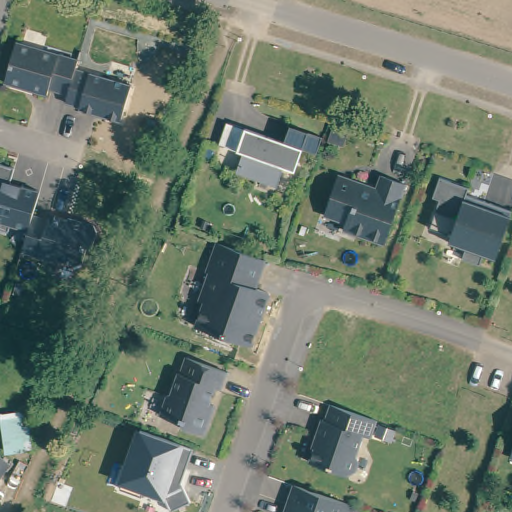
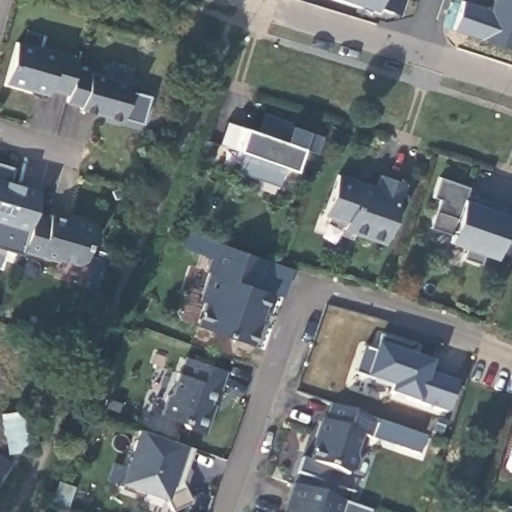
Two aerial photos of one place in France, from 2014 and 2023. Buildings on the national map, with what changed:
new [(360,2),(355,0),(361,0),(360,2)]
new [(400,14),(379,7),(381,3),(372,0),(405,0),(400,14)]
new [(512,46),(511,48),(447,25),(455,0),(465,0),(484,7),(487,0),(512,0),(512,46)]
unchanged [(46,88),(44,94),(2,82),(13,43),(75,60),(74,64),(65,94),(46,88)]
unchanged [(65,94),(74,64),(130,80),(119,116),(78,104),(77,107),(62,103),(65,94)]
unchanged [(253,132),(265,111),(289,123),(320,134),(313,156),(297,151),(290,172),(279,168),(273,185),(232,172),(238,155),(214,147),(222,124),(253,132)]
unchanged [(35,201),(31,216),(29,220),(27,227),(26,231),(8,226),(5,232),(0,230),(0,165),(11,168),(7,183),(37,191),(35,201)]
unchanged [(404,180),(385,240),(342,227),(344,219),(324,211),(330,193),(332,193),(337,173),(363,180),(362,188),(372,190),(379,173),(404,180)]
unchanged [(467,184),(464,195),(480,200),(482,196),(511,205),(502,234),(489,230),(480,260),(460,253),(464,243),(448,238),(451,231),(429,223),(438,196),(432,195),(438,174),(467,184)]
unchanged [(46,220),(47,215),(64,220),(66,223),(71,225),(72,220),(91,225),(95,231),(91,243),(85,247),(81,261),(75,265),(56,259),(55,262),(20,252),(26,231),(27,227),(29,220),(31,216),(46,220)]
unchanged [(255,286),(268,290),(250,342),(196,323),(203,300),(199,299),(209,271),(206,269),(216,240),(264,257),(255,286)]
new [(362,349),(373,353),(379,338),(414,350),(411,360),(428,366),(425,377),(454,387),(444,416),(387,396),(390,389),(352,376),(362,349)]
unchanged [(36,388),(40,379),(37,377),(45,358),(25,350),(30,339),(65,353),(60,364),(47,393),(36,388)]
unchanged [(218,386),(213,385),(204,413),(208,419),(203,432),(182,426),(181,422),(158,415),(165,392),(169,394),(176,372),(179,372),(184,356),(224,369),(218,386)]
unchanged [(368,433),(360,430),(353,449),(355,454),(356,459),(354,462),(352,467),(349,470),(343,470),(309,458),(316,437),(316,428),(320,416),(324,415),(329,401),(347,408),(372,417),(368,433)]
unchanged [(138,430),(185,446),(194,450),(180,483),(189,503),(172,511),(166,499),(119,483),(138,430)]
unchanged [(512,439),(512,459),(505,457),(512,439)]
unchanged [(6,462),(0,470),(0,457),(6,462)]
unchanged [(285,512),(288,502),(283,502),(289,482),(352,504),(348,512),(285,512)]

